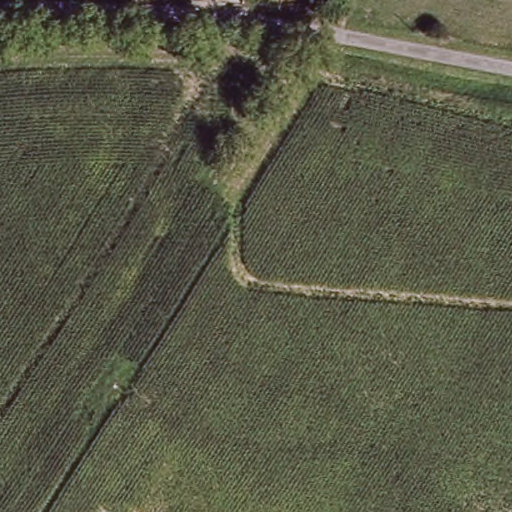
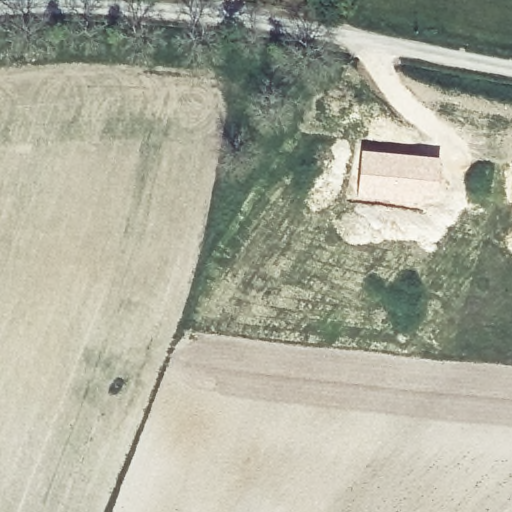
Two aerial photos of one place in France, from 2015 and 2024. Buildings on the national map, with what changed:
new [(360,148),(440,157),(434,208),(355,198),(360,148)]

